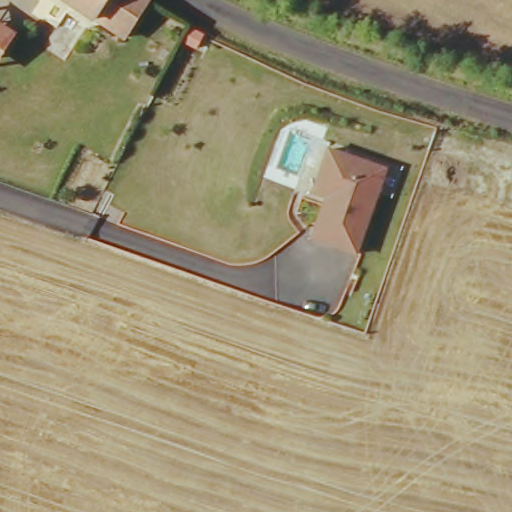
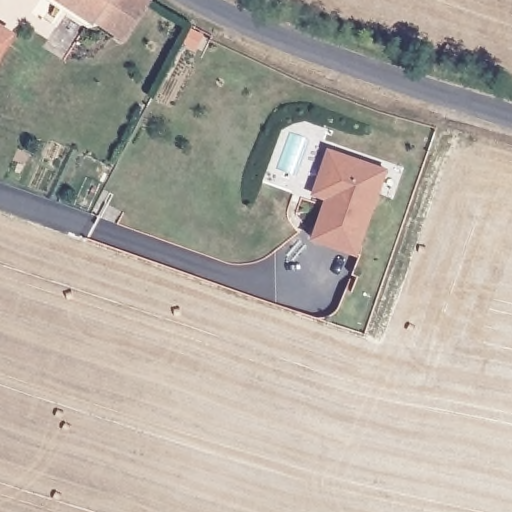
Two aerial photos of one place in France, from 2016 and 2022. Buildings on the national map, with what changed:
unchanged [(96,17),(93,23),(60,0),(107,0),(96,17)]
unchanged [(149,1),(125,38),(96,17),(107,0),(148,0),(149,1)]
unchanged [(0,46),(0,25),(11,31),(0,46)]
unchanged [(387,170),(379,191),(357,252),(313,235),(325,201),(327,194),(316,190),(322,171),(330,150),(387,170)]

